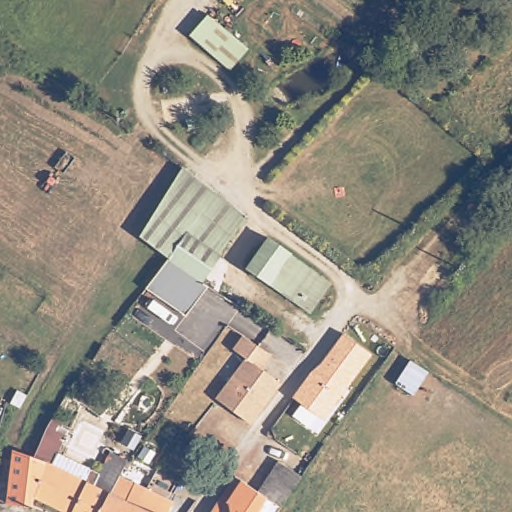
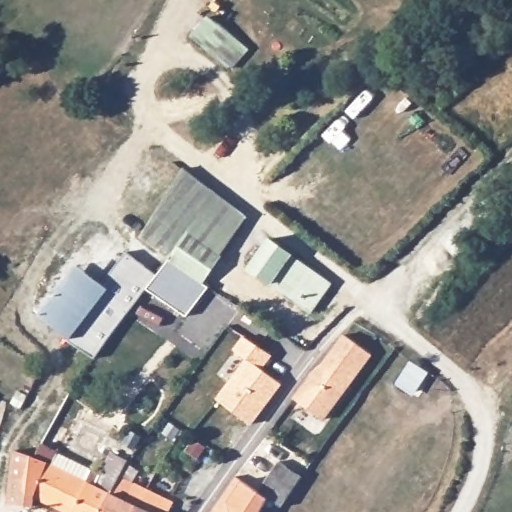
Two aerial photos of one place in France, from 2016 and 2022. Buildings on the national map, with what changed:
unchanged [(186,30),(209,7),(247,44),(229,68),(186,30)]
unchanged [(247,216),(205,282),(210,286),(187,316),(148,288),(171,258),(140,236),(183,167),(247,216)]
unchanged [(312,312),(246,269),(268,236),(333,282),(312,312)]
new [(94,356),(70,338),(40,314),(77,264),(101,283),(126,251),(157,276),(94,356)]
unchanged [(315,368),(324,362),(345,333),(373,355),(325,422),(294,397),(315,368)]
unchanged [(246,359),(235,349),(245,335),(275,355),(263,371),(283,385),(253,425),(218,397),(246,359)]
unchanged [(170,498),(164,512),(154,512),(23,450),(28,436),(23,435),(31,415),(50,422),(55,417),(71,429),(60,453),(94,468),(104,463),(111,450),(130,458),(121,475),(170,498)]
unchanged [(154,512),(71,512),(44,500),(40,511),(10,508),(19,448),(23,450),(154,512)]
unchanged [(284,464),(307,478),(288,508),(265,493),(284,464)]
unchanged [(241,482),(266,499),(258,512),(213,512),(236,477),(241,482)]

